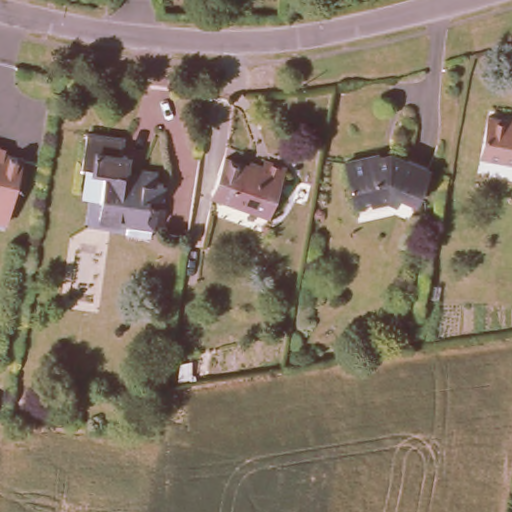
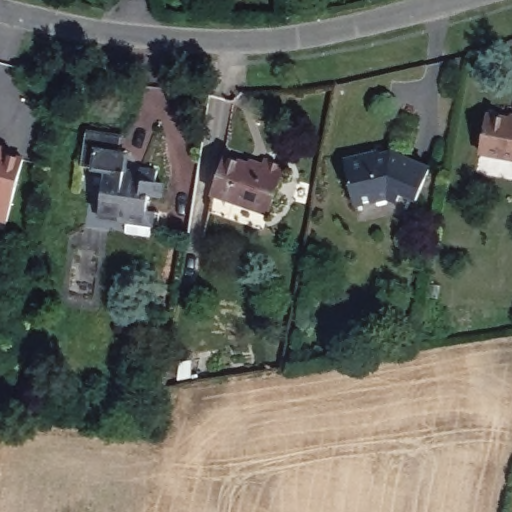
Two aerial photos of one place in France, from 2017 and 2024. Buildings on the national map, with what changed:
unchanged [(507,117),(508,112),(512,113),(512,157),(477,150),(485,112),(507,117)]
unchanged [(92,136),(127,142),(124,157),(133,159),(130,175),(145,177),(146,172),(162,175),(162,186),(168,186),(166,202),(154,200),(152,216),(158,217),(155,240),(130,236),(132,225),(104,220),(110,174),(86,170),(92,136)]
unchanged [(0,144),(9,147),(7,152),(22,155),(6,221),(0,220),(0,144)]
unchanged [(377,152),(382,155),(391,152),(432,167),(421,199),(405,192),(402,200),(386,195),(353,202),(342,160),(377,152)]
unchanged [(225,155),(262,168),(265,158),(285,165),(268,212),(212,192),(225,155)]
unchanged [(192,360),(192,374),(178,376),(181,362),(192,360)]

